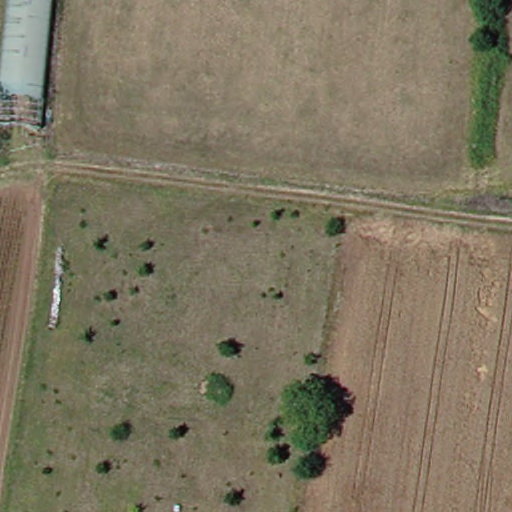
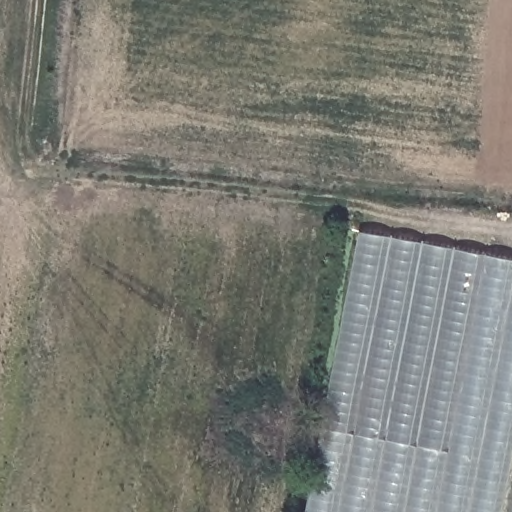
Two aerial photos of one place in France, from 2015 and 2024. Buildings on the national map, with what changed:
demolished [(31,131),(0,129),(0,23),(2,0),(45,0),(31,131)]
new [(512,239),(512,497),(510,512),(335,512),(383,223),(512,239)]

